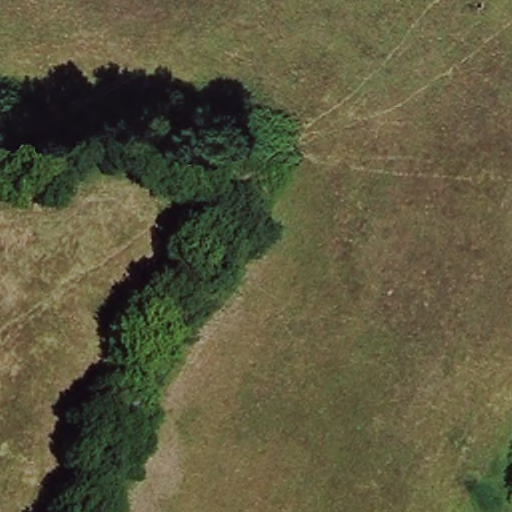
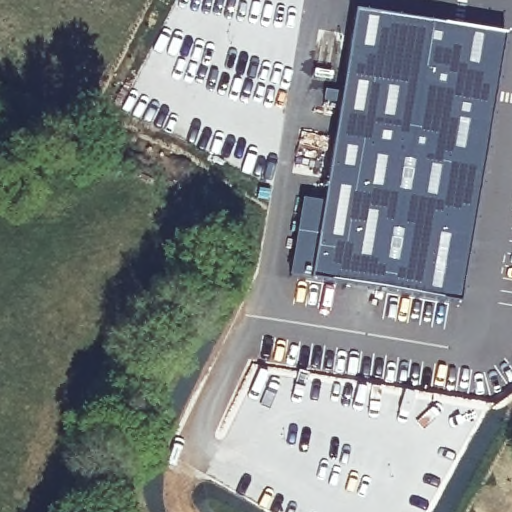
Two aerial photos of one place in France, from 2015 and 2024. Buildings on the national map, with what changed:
new [(320,201),(350,9),(415,21),(504,32),(476,191),(467,257),(460,301),(425,297),(308,277),(320,201)]
new [(300,197),(320,201),(308,277),(288,274),(300,197)]

